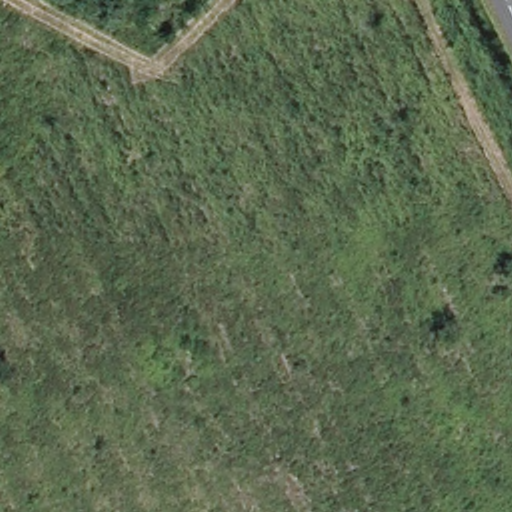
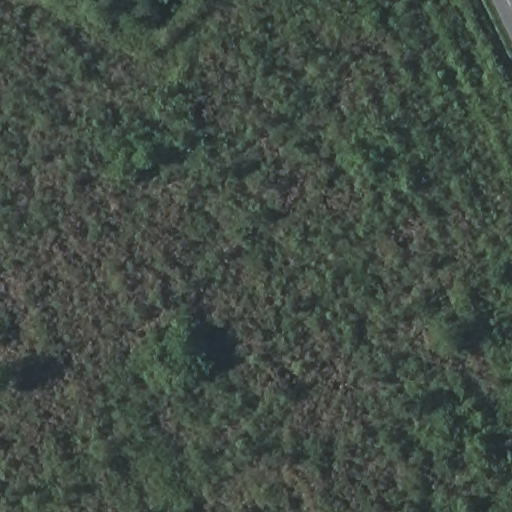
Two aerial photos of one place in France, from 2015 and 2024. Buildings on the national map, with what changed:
[]

